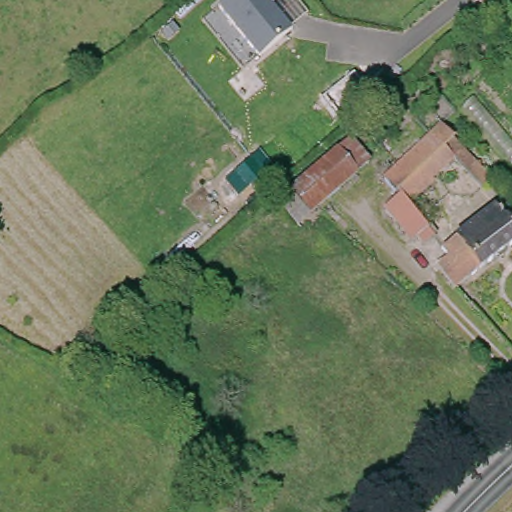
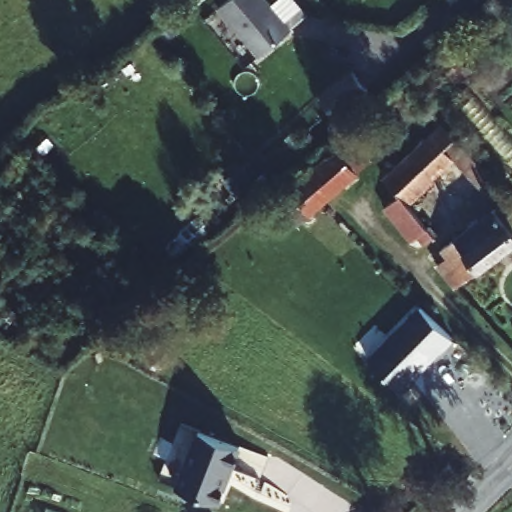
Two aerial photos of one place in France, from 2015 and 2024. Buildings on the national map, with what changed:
unchanged [(294,25),(262,52),(223,3),(226,0),(273,0),(294,25)]
unchanged [(349,73),(364,90),(332,117),(318,100),(349,73)]
unchanged [(506,193),(492,203),(460,163),(444,177),(434,167),(422,177),(436,195),(421,206),(448,243),(428,258),(384,201),(405,184),(393,166),(448,121),(506,193)]
unchanged [(301,221),(284,201),(346,150),(363,170),(322,203),(301,221)]
unchanged [(443,270),(512,213),(512,249),(459,291),(443,270)]
new [(403,392),(367,357),(419,305),(454,339),(403,392)]
new [(199,429),(243,445),(221,502),(176,485),(199,429)]

